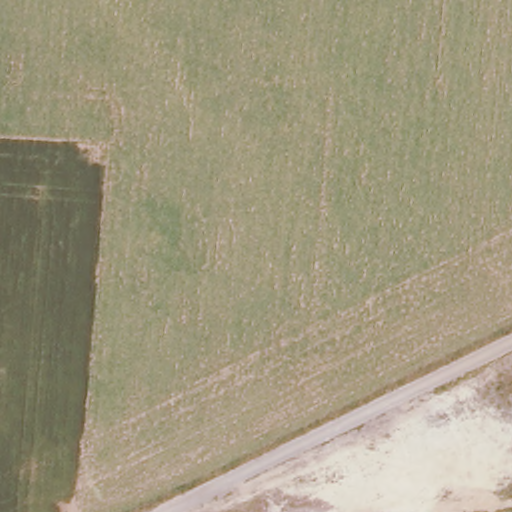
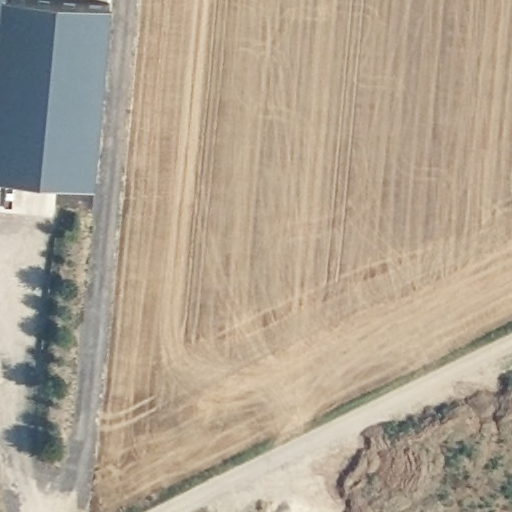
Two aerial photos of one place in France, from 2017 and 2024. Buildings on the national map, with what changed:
new [(110,2),(94,183),(0,175),(0,0),(83,0),(110,2)]

